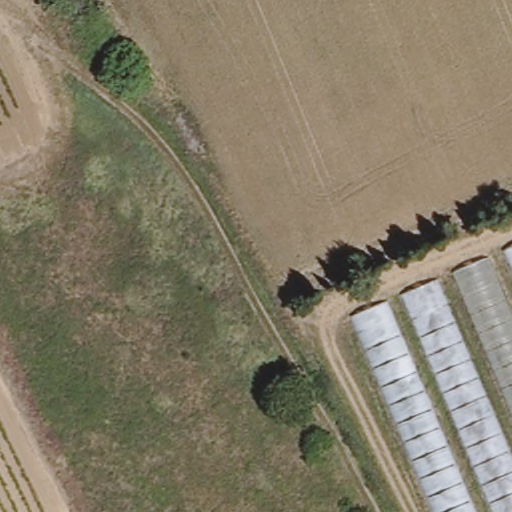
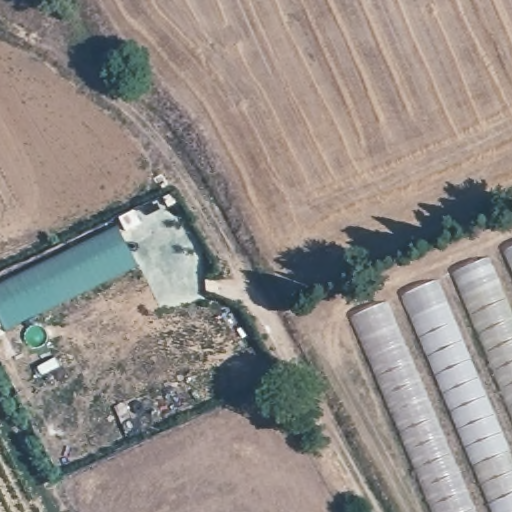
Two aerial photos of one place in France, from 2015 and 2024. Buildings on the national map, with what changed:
new [(0,318),(0,287),(119,228),(138,262),(5,328),(0,318)]
unchanged [(356,317),(512,251),(512,512),(438,512),(356,317)]

